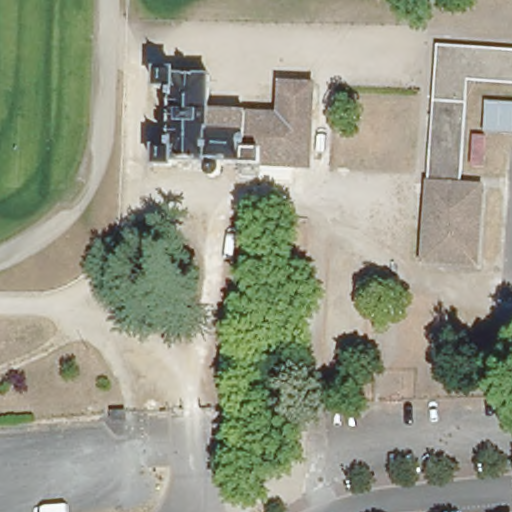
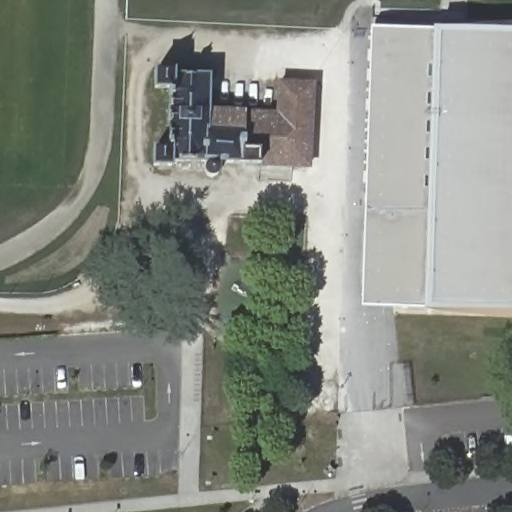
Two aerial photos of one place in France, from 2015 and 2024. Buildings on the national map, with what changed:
new [(423,309),(360,307),(370,26),(433,27),(512,29),(512,312),(423,309)]
demolished [(465,99),(461,160),(459,184),(481,185),(475,261),(421,257),(428,178),(429,159),(432,98),(434,76),(436,41),(453,43),(452,48),(452,49),(466,49),(466,44),(481,44),(481,50),(495,51),(511,53),(512,46),(512,79),(466,76),(465,99)]
unchanged [(171,89),(155,88),(155,70),(174,71),(174,76),(208,78),(207,111),(277,114),(279,82),(311,83),(308,164),(219,161),(219,164),(221,169),(220,174),(215,179),(210,179),(205,177),(204,172),(204,166),(204,164),(205,161),(170,160),(170,166),(154,165),(154,148),(169,148),(171,89)]
demolished [(485,103),(512,105),(512,132),(482,130),(485,103)]
demolished [(121,412),(122,421),(110,421),(110,413),(121,412)]

